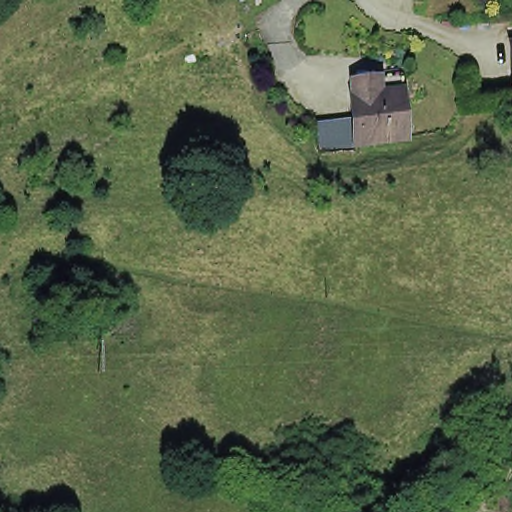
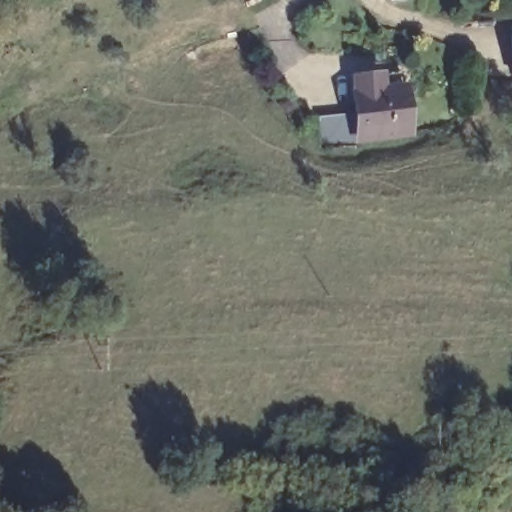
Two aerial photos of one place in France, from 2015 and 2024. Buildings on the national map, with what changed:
unchanged [(348,141),(343,97),(346,96),(344,81),(369,78),(392,75),(394,89),(399,135),(348,141)]

